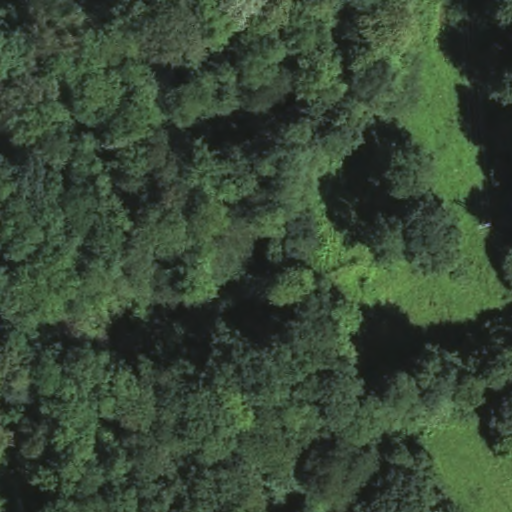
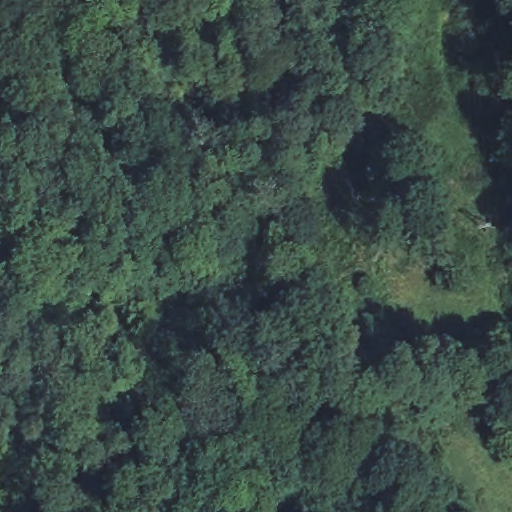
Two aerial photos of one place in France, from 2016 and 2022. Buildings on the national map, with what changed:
[]

